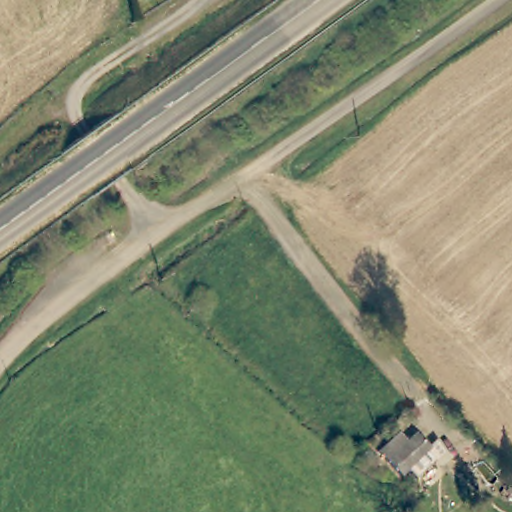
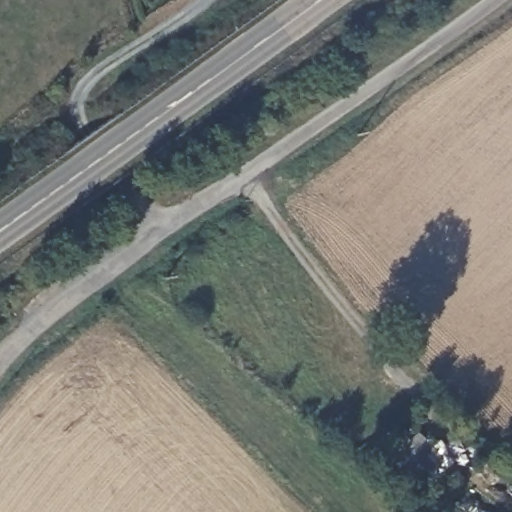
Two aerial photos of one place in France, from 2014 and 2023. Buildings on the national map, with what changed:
unchanged [(410,445),(419,436),(430,450),(407,471),(384,445),(398,433),(410,445)]

